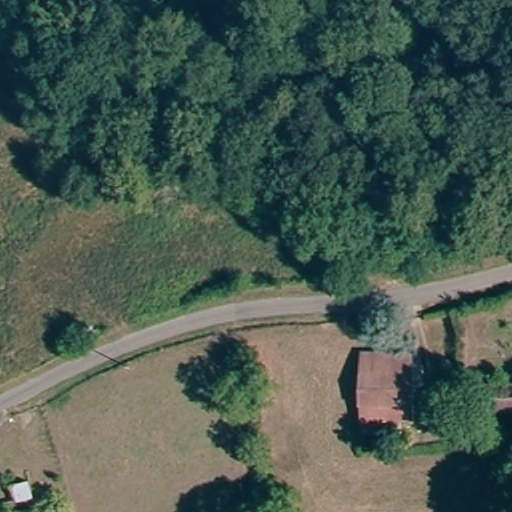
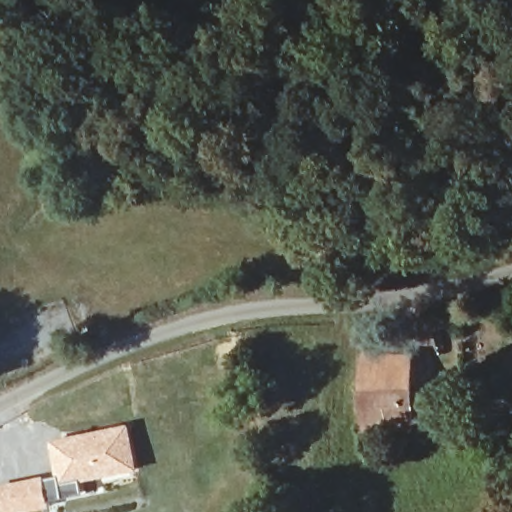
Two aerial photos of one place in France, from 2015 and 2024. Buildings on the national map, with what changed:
unchanged [(412,352),(410,414),(380,416),(380,425),(355,425),(357,349),(364,349),(412,352)]
unchanged [(512,386),(512,411),(478,412),(476,387),(512,386)]
new [(140,470),(84,483),(85,495),(52,501),(54,508),(36,512),(1,512),(0,507),(0,485),(45,476),(45,480),(59,477),(51,440),(131,425),(140,470)]
demolished [(39,497),(10,508),(11,512),(0,512),(0,483),(30,472),(27,463),(53,455),(73,512),(43,512),(39,497)]

